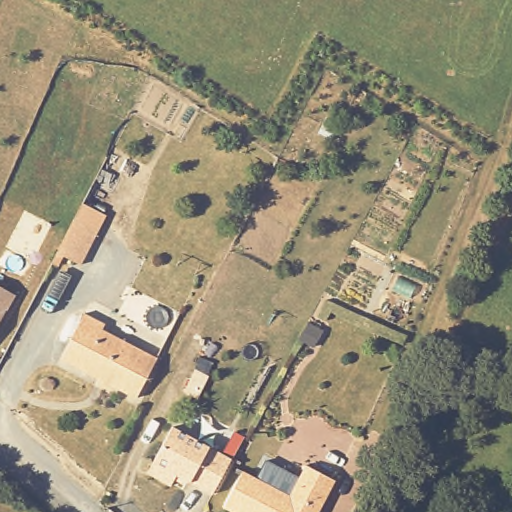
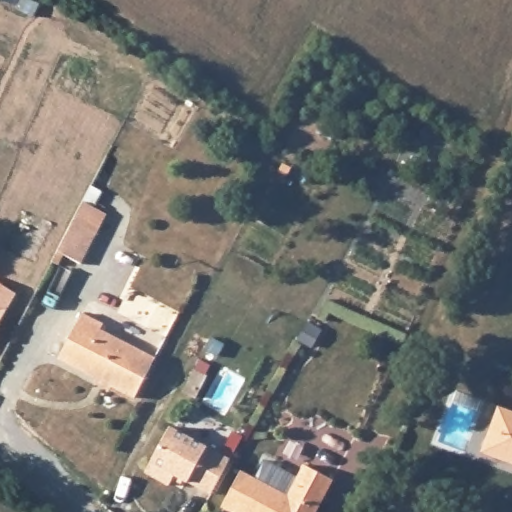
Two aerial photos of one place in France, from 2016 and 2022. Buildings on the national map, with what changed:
unchanged [(98,235),(81,264),(60,251),(75,221),(98,235)]
unchanged [(17,293),(0,320),(0,283),(17,293)]
unchanged [(134,396),(65,356),(89,312),(110,323),(108,326),(157,354),(134,396)]
new [(512,411),(512,464),(480,453),(498,406),(512,411)]
unchanged [(170,474),(163,485),(139,472),(165,425),(225,459),(205,493),(170,474)]
unchanged [(309,462),(330,475),(309,512),(238,512),(225,504),(247,466),(291,490),(309,462)]

